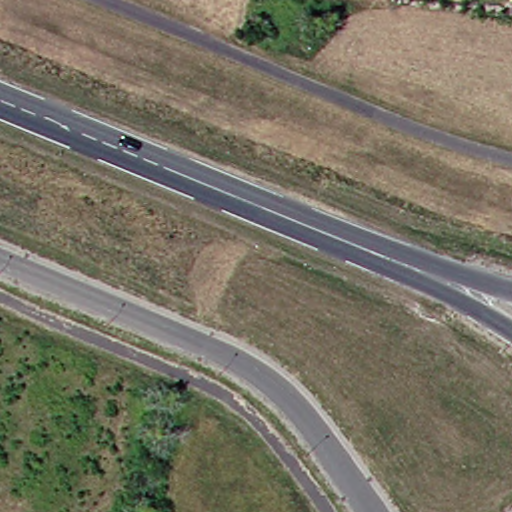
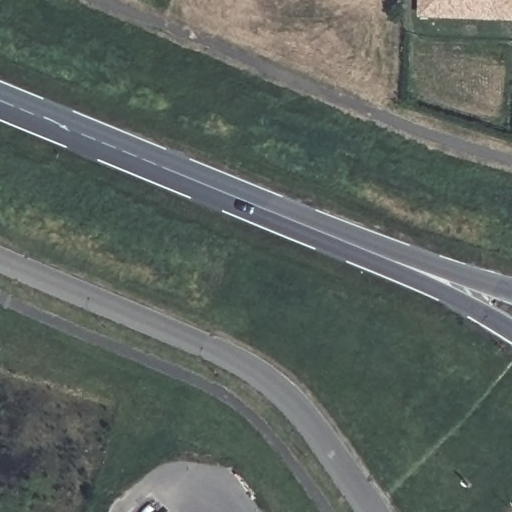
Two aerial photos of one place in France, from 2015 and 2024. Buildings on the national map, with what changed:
new [(421,0),(512,0),(512,17),(420,14),(421,0)]

